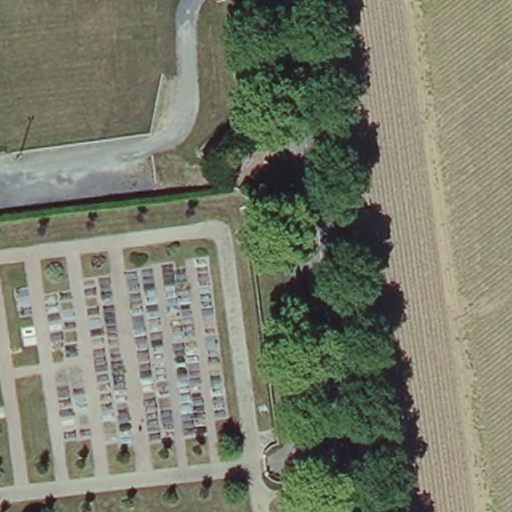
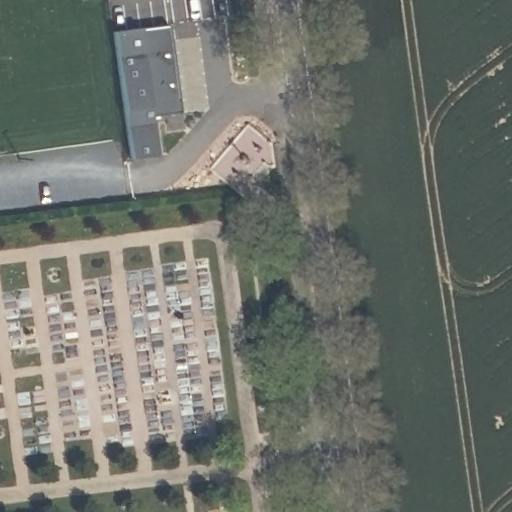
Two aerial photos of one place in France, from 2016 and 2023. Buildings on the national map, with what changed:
new [(173,20),(183,108),(153,112),(159,153),(131,155),(114,28),(173,20)]

